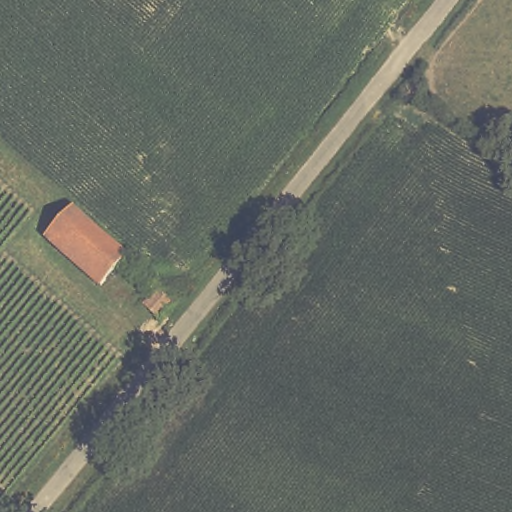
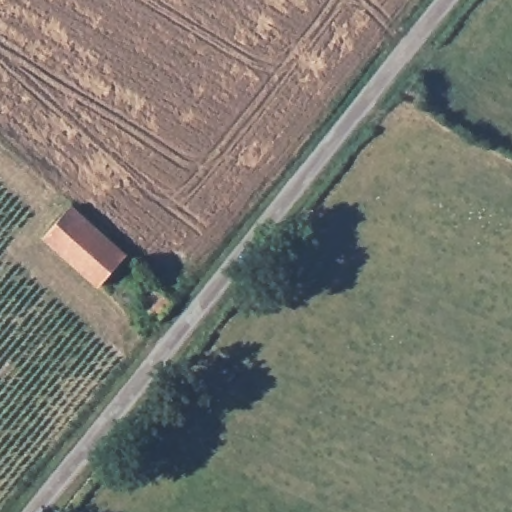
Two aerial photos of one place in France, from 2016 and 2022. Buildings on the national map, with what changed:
unchanged [(74,202),(125,253),(96,282),(45,232),(74,202)]
unchanged [(149,289),(164,305),(150,319),(134,303),(149,289)]

